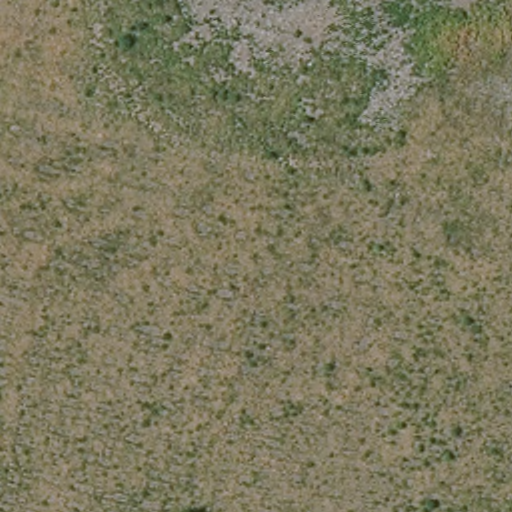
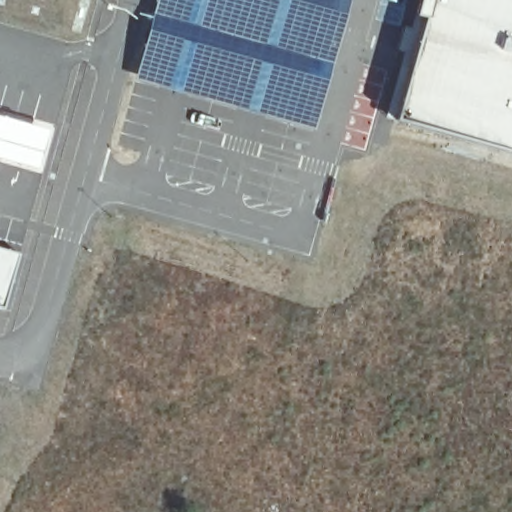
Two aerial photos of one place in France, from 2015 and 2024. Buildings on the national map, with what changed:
new [(141,51),(155,0),(350,0),(345,18),(314,129),(272,119),(134,80),(141,51)]
new [(396,119),(425,18),(415,15),(419,0),(512,0),(512,152),(396,119)]
new [(38,171),(0,159),(0,119),(49,134),(38,171)]
new [(2,309),(0,308),(0,250),(18,255),(2,309)]

